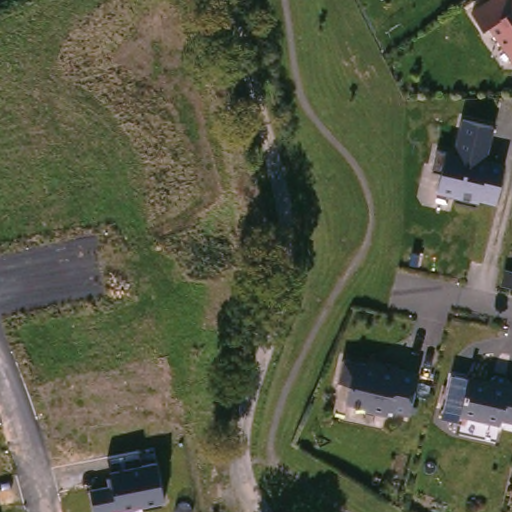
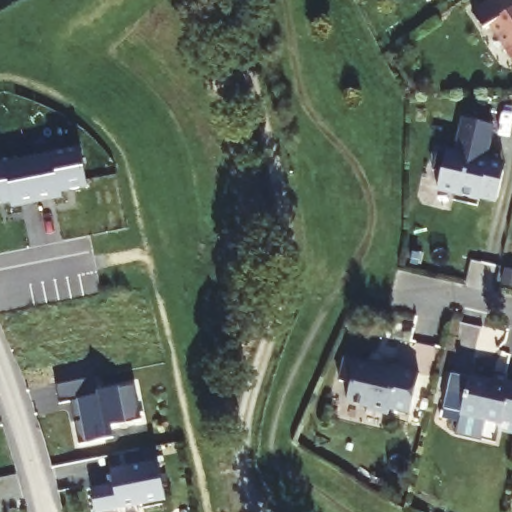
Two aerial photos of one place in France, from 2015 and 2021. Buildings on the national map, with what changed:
unchanged [(512,0),(512,48),(494,24),(486,29),(475,7),(485,0),(512,0)]
unchanged [(492,123),(488,158),(503,159),(497,203),(477,199),(476,204),(453,201),(453,195),(431,192),(437,150),(454,151),(460,118),(492,123)]
new [(81,150),(89,190),(62,195),(64,200),(39,205),(30,160),(81,150)]
new [(39,205),(14,210),(12,205),(0,207),(0,167),(30,160),(39,205)]
new [(507,269),(512,270),(512,286),(503,284),(507,269)]
unchanged [(362,357),(419,369),(408,410),(389,406),(387,410),(352,400),(362,357)]
unchanged [(468,367),(512,377),(512,417),(504,415),(502,421),(460,410),(468,367)]
new [(60,406),(56,386),(95,378),(97,393),(133,386),(141,422),(110,428),(112,440),(78,447),(73,423),(69,404),(60,406)]
unchanged [(90,487),(111,483),(107,453),(140,447),(144,462),(157,460),(165,501),(101,512),(95,512),(90,487)]

